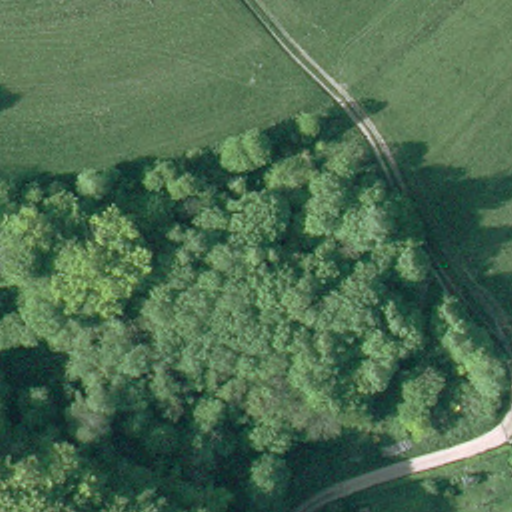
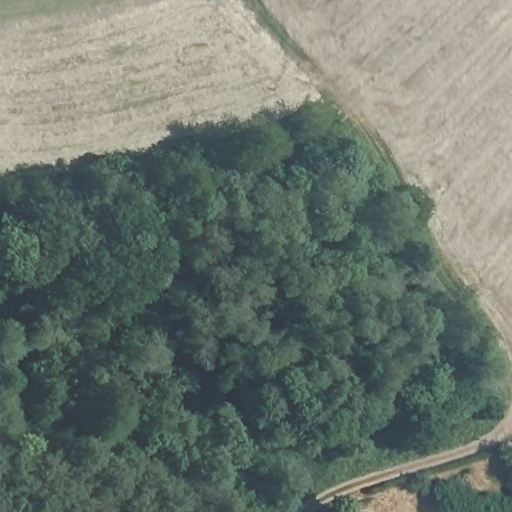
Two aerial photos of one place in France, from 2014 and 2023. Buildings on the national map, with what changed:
unchanged [(176,286),(177,300),(149,303),(147,289),(176,286)]
unchanged [(350,511),(349,512),(324,512),(324,511),(350,511)]

